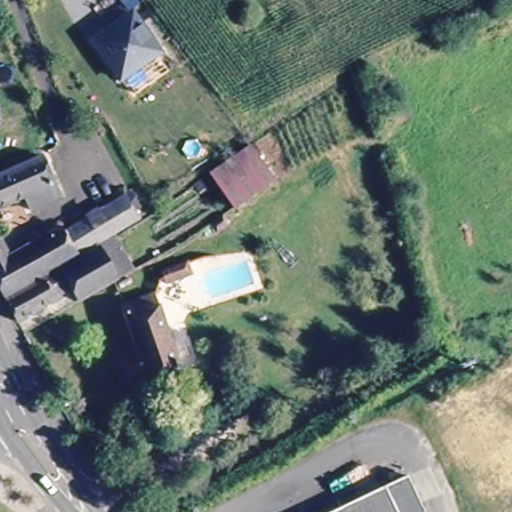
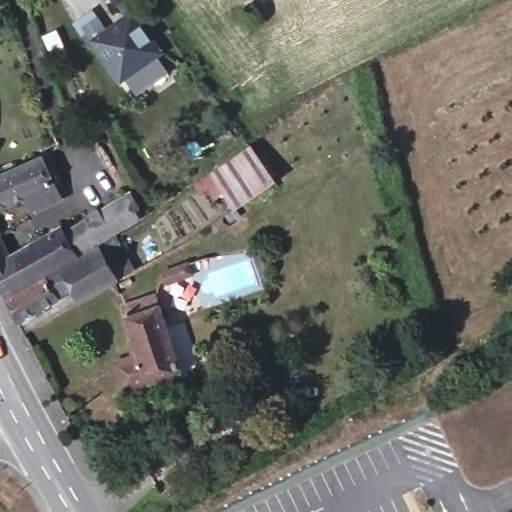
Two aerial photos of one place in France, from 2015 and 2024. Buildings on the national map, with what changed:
unchanged [(164,52),(121,82),(91,40),(133,10),(164,52)]
unchanged [(248,141),(274,180),(232,207),(207,169),(248,141)]
unchanged [(42,153),(62,144),(73,170),(54,179),(56,183),(0,209),(0,174),(42,153)]
unchanged [(10,254),(63,223),(66,228),(128,193),(142,216),(102,241),(7,301),(0,287),(0,232),(10,254)]
unchanged [(102,241),(123,275),(78,300),(71,287),(58,294),(59,298),(18,320),(7,301),(102,241)]
unchanged [(144,354),(126,294),(156,284),(179,355),(182,365),(134,382),(128,359),(144,354)]
demolished [(403,474),(422,512),(324,512),(403,474)]

